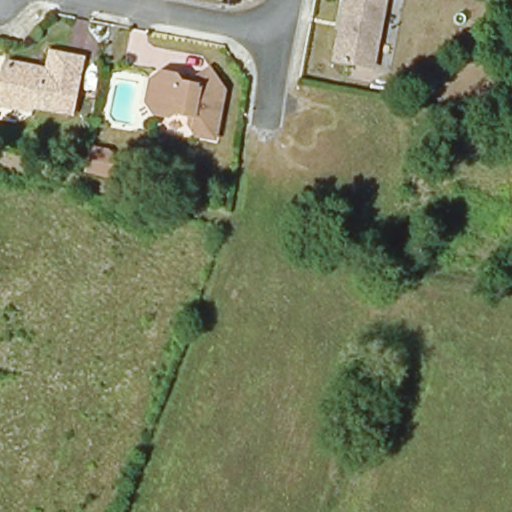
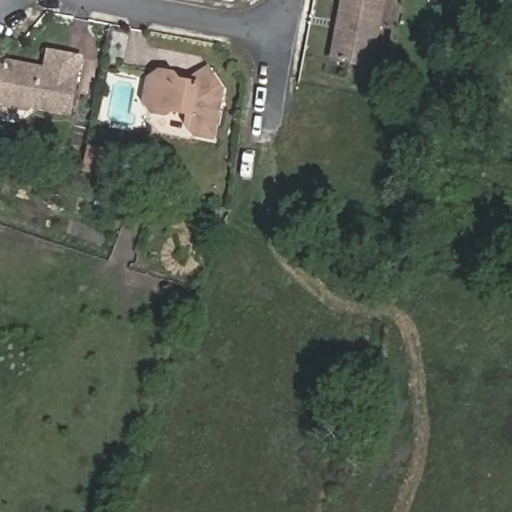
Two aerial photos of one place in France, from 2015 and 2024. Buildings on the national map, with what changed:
unchanged [(385,0),(379,30),(372,67),(333,59),(344,0),(385,0)]
unchanged [(1,107),(0,105),(0,79),(2,66),(9,62),(46,69),(50,52),(81,57),(78,74),(69,115),(28,107),(23,111),(1,107)]
unchanged [(186,87),(208,72),(223,94),(214,144),(195,141),(187,129),(189,120),(172,117),(167,120),(153,117),(144,107),(149,84),(160,76),(175,80),(180,86),(186,87)]
unchanged [(111,151),(107,171),(88,167),(92,147),(111,151)]

